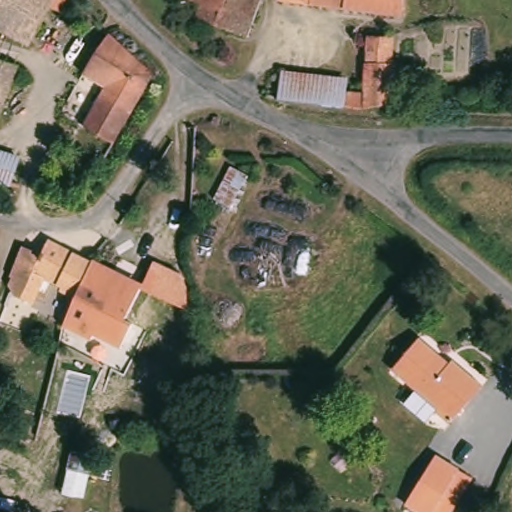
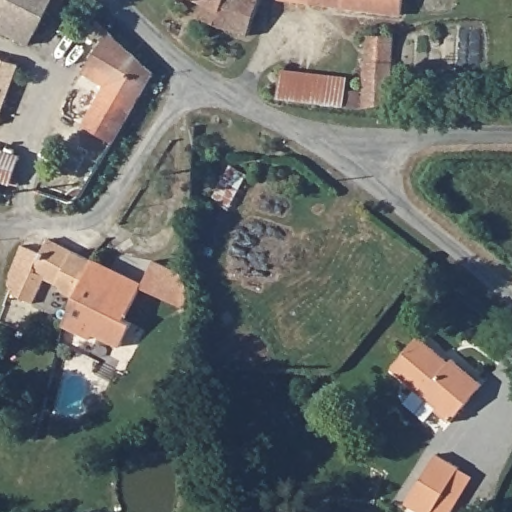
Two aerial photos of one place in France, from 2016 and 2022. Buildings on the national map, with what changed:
unchanged [(32,47),(0,31),(0,0),(57,0),(32,47)]
unchanged [(242,35),(191,17),(194,4),(183,0),(256,0),(242,35)]
unchanged [(403,15),(284,0),(405,0),(403,15)]
unchanged [(97,50),(109,29),(154,71),(114,140),(83,122),(118,61),(97,50)]
unchanged [(405,100),(387,102),(377,104),(358,107),(351,107),(274,97),(277,71),(344,78),(343,87),(359,89),(364,36),(389,36),(388,83),(405,83),(405,100)]
unchanged [(0,60),(17,66),(0,112),(0,60)]
unchanged [(12,183),(0,179),(0,150),(20,157),(12,183)]
unchanged [(45,252),(52,240),(94,257),(76,299),(63,293),(64,288),(47,280),(35,304),(12,292),(17,279),(11,275),(27,244),(45,252)]
unchanged [(94,257),(142,284),(117,338),(96,330),(90,340),(63,328),(76,299),(94,257)]
unchanged [(189,290),(186,308),(142,284),(154,258),(180,270),(188,278),(189,290)]
unchanged [(416,333),(448,360),(452,356),(480,381),(446,423),(429,410),(434,405),(386,367),(416,333)]
unchanged [(432,457),(455,471),(469,480),(454,504),(449,512),(412,512),(403,506),(432,457)]

